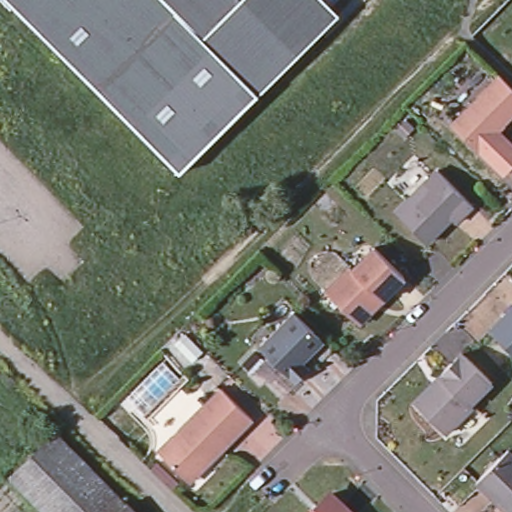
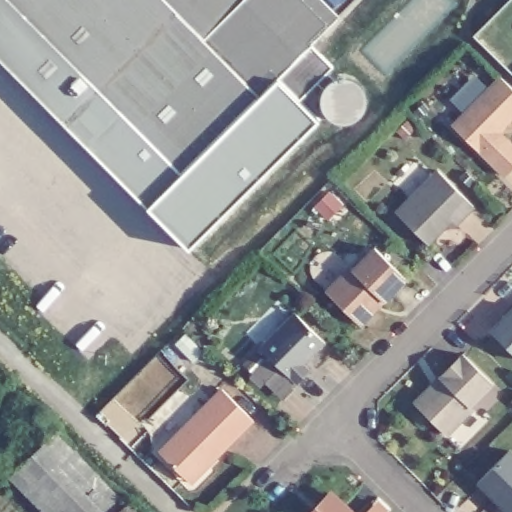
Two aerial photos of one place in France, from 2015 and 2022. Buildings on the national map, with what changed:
new [(181,175),(261,97),(313,47),(332,65),(298,99),(317,119),(188,245),(0,59),(0,0),(9,0),(128,119),(181,175)]
unchanged [(9,0),(166,0),(208,41),(128,119),(9,0)]
unchanged [(166,0),(249,0),(208,41),(166,0)]
unchanged [(305,0),(331,28),(261,97),(208,41),(249,0),(305,0)]
unchanged [(331,28),(305,0),(323,0),(341,18),(331,28)]
unchanged [(208,41),(261,97),(181,175),(128,119),(208,41)]
unchanged [(512,116),(501,128),(512,139),(512,166),(507,172),(455,119),(504,72),(512,81),(512,116)]
unchanged [(452,221),(428,245),(397,214),(438,173),(474,208),(462,219),(456,225),(452,221)]
unchanged [(406,279),(384,302),(380,299),(356,322),(326,293),(351,269),(354,271),(375,249),(406,279)]
unchanged [(296,309),(327,339),(306,361),(312,367),(299,380),(263,343),(296,309)]
unchanged [(512,309),(512,354),(489,331),(512,309)]
unchanged [(492,386),(471,408),(473,410),(447,436),(419,409),(414,404),(440,379),(463,356),(492,386)]
unchanged [(189,475),(162,448),(223,386),(254,417),(211,460),(193,479),(189,475)]
unchanged [(512,401),(512,403),(511,402),(512,401)]
unchanged [(13,479),(57,434),(126,509),(124,512),(45,512),(13,479)]
unchanged [(477,484),(509,452),(512,455),(512,512),(505,512),(500,507),(477,484)]
unchanged [(331,496),(348,512),(315,512),(331,496)]
unchanged [(126,509),(130,506),(136,512),(124,512),(126,509)]

